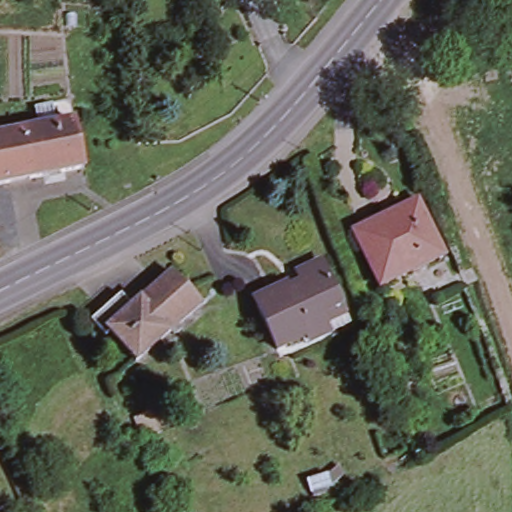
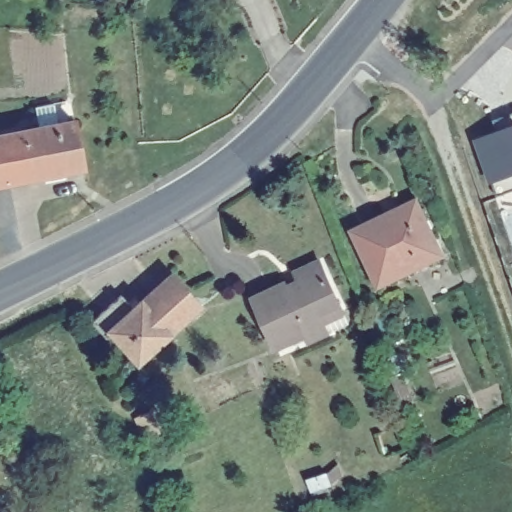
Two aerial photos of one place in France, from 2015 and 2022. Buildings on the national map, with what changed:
new [(477,140),(496,134),(492,121),(512,114),(512,193),(497,199),(492,184),(477,140)]
unchanged [(73,120),(82,167),(27,178),(20,130),(73,120)]
unchanged [(27,178),(0,183),(0,134),(20,130),(27,178)]
unchanged [(439,255),(376,286),(350,232),(412,201),(439,255)]
unchanged [(327,330),(307,340),(302,332),(274,345),(252,302),(297,280),(293,271),(317,260),(339,302),(347,320),(327,330)]
unchanged [(147,307),(180,276),(207,308),(175,336),(147,307)]
unchanged [(175,336),(142,365),(119,339),(112,345),(105,336),(98,328),(110,317),(127,301),(140,313),(147,307),(175,336)]
unchanged [(130,417),(145,410),(155,432),(140,439),(130,417)]
unchanged [(304,477),(324,471),(335,461),(339,471),(327,481),(307,488),(304,477)]

